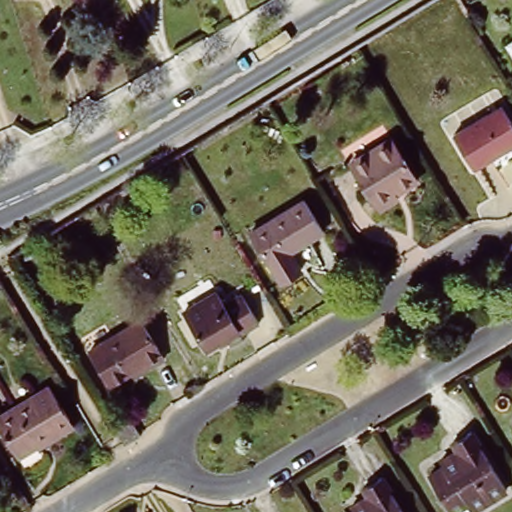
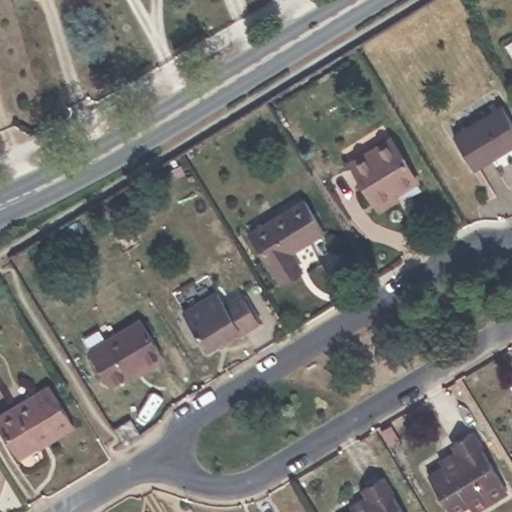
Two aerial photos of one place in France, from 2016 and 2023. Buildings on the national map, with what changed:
unchanged [(498,102),(512,124),(512,140),(473,165),(452,131),(498,102)]
unchanged [(395,136),(418,174),(395,188),(399,195),(375,209),(348,165),(395,136)]
unchanged [(300,200),(320,235),(287,254),(298,273),(277,285),(245,232),(300,200)]
unchanged [(214,284),(223,298),(239,288),(258,319),(224,340),(219,333),(202,343),(180,305),(214,284)]
unchanged [(139,313),(164,353),(147,363),(144,358),(111,379),(89,344),(139,313)]
unchanged [(69,417),(36,437),(40,444),(20,457),(0,424),(0,414),(49,384),(69,417)]
unchanged [(139,434),(122,446),(114,433),(132,422),(139,434)]
unchanged [(460,451),(452,437),(469,426),(505,485),(472,505),(467,497),(453,506),(430,470),(460,451)]
unchanged [(359,484),(376,473),(401,512),(345,512),(367,497),(359,484)]

